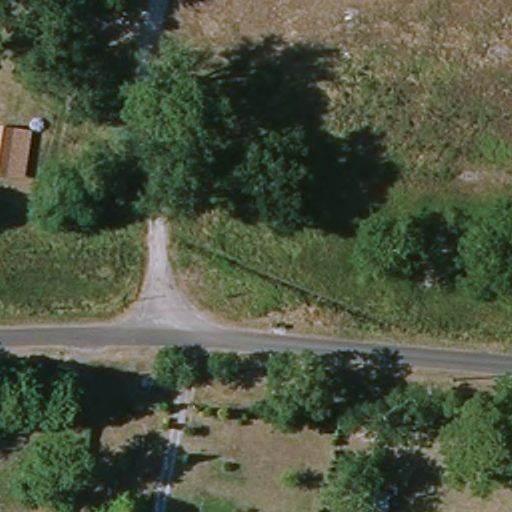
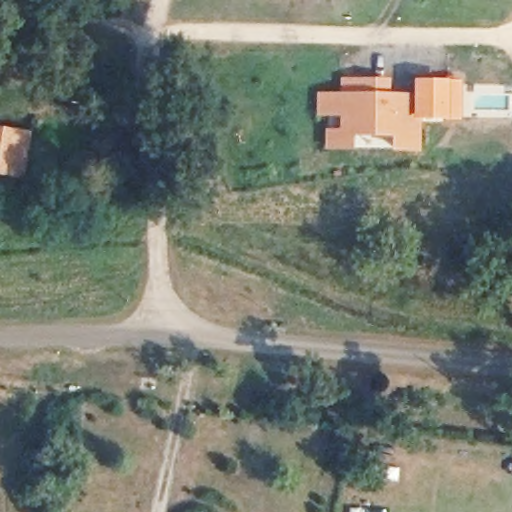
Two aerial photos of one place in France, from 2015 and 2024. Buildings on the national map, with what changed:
new [(417,100),(360,98),(360,83),(342,82),(342,76),(391,77),(391,92),(414,92),(414,79),(445,80),(446,77),(462,79),(463,119),(450,118),(450,120),(422,120),(421,151),(415,151),(417,100)]
new [(317,97),(342,97),(342,82),(360,83),(360,98),(417,100),(415,151),(393,150),(393,136),(342,135),(343,115),(317,115),(317,97)]
new [(342,129),(342,135),(354,135),(353,151),(324,150),(325,127),(342,129)]
unchanged [(25,177),(0,173),(0,131),(34,137),(25,177)]

